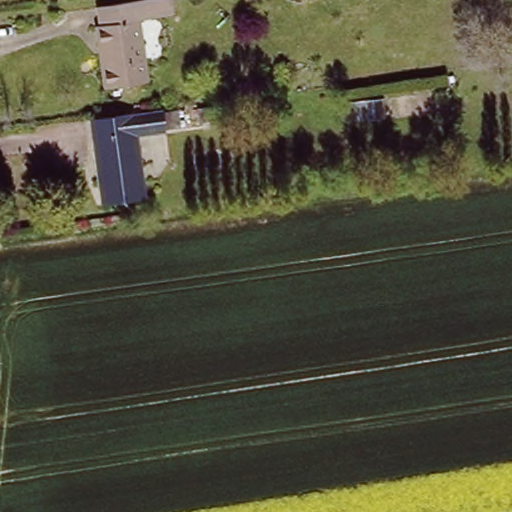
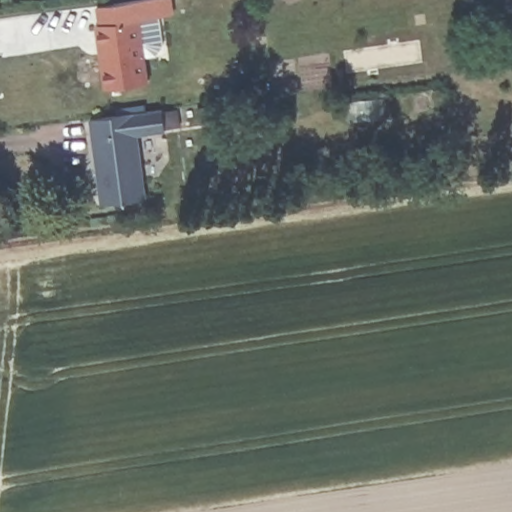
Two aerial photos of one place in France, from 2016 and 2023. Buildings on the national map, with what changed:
unchanged [(146,79),(103,82),(96,21),(101,21),(98,0),(172,0),(173,11),(160,12),(141,14),(146,79)]
unchanged [(165,130),(135,135),(144,199),(103,205),(90,119),(161,109),(165,130)]

